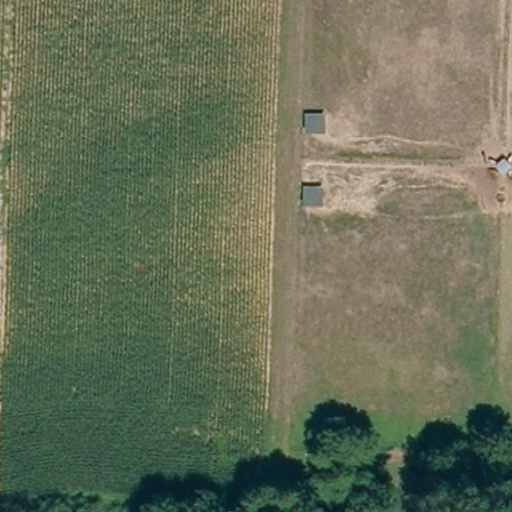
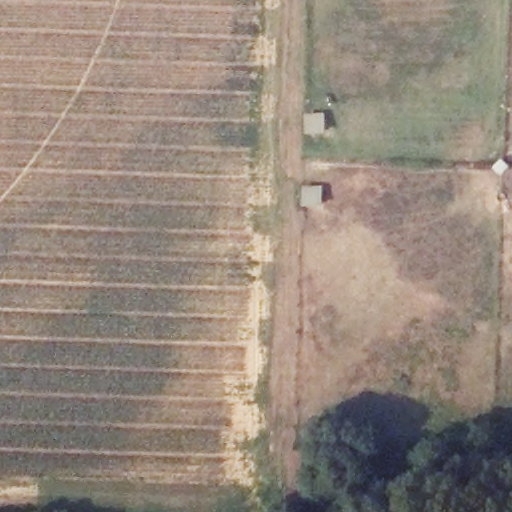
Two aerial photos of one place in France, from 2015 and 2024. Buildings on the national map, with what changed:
[]

